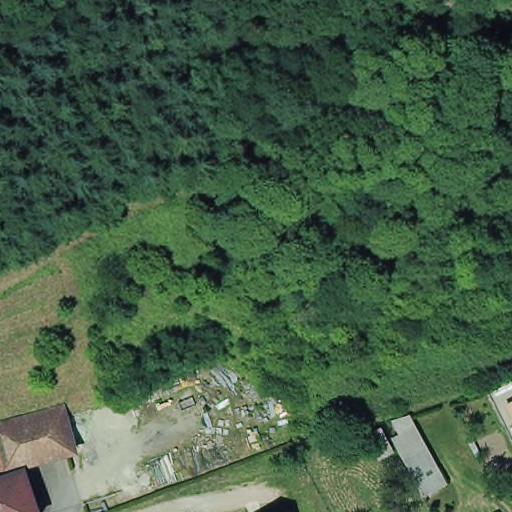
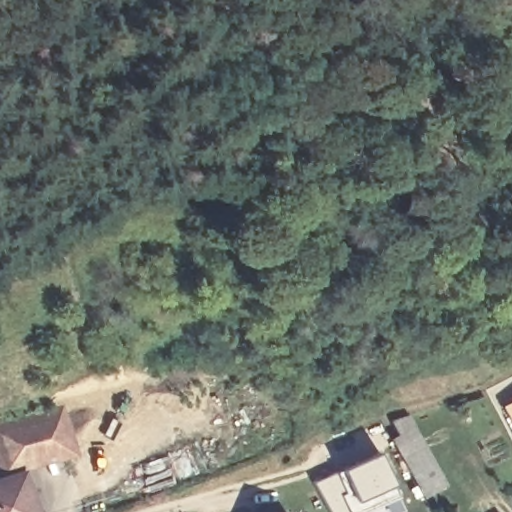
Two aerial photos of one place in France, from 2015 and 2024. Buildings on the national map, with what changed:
unchanged [(512,404),(512,421),(505,407),(512,404)]
unchanged [(427,499),(399,446),(397,441),(404,438),(396,422),(407,418),(412,416),(451,487),(427,499)]
unchanged [(0,432),(56,417),(64,448),(8,463),(0,434),(0,432)]
demolished [(379,455),(370,437),(386,430),(396,447),(399,454),(384,462),(379,455)]
new [(401,497),(369,512),(328,512),(314,483),(342,470),(380,452),(393,485),(401,497)]
unchanged [(35,512),(0,512),(0,478),(21,471),(35,512)]

